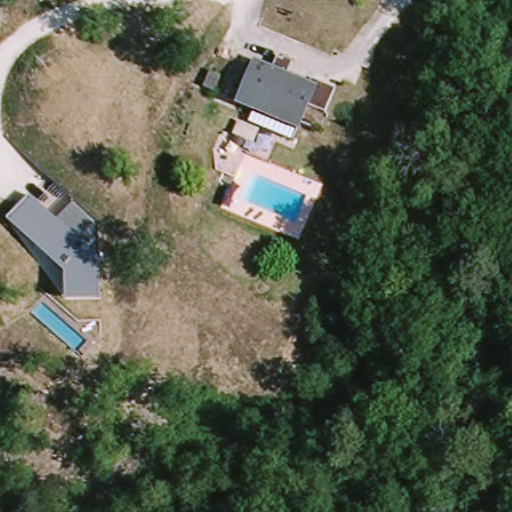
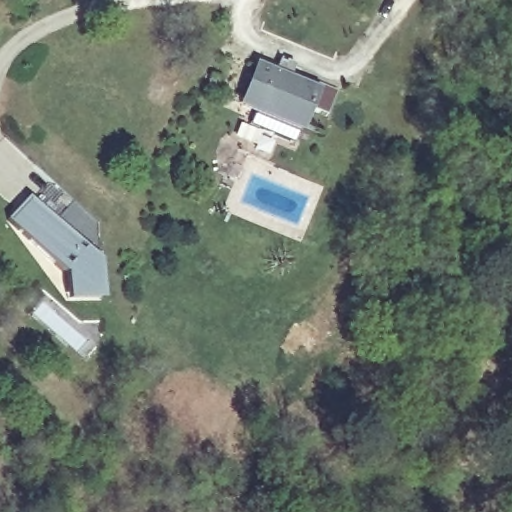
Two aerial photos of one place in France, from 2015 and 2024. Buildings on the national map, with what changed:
unchanged [(243,120),(252,104),(238,98),(252,67),(271,76),(278,61),(290,67),(284,81),(306,90),(311,83),(333,94),(322,116),(304,108),(290,140),(243,120)]
unchanged [(210,87),(215,75),(224,79),(218,91),(210,87)]
unchanged [(28,198),(58,223),(74,205),(95,223),(100,262),(101,302),(65,301),(65,275),(7,221),(28,198)]

